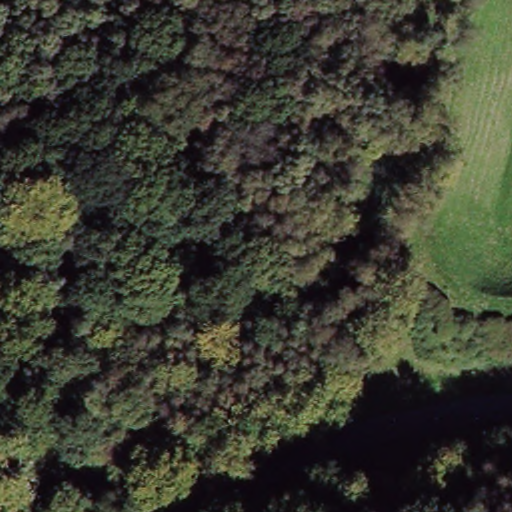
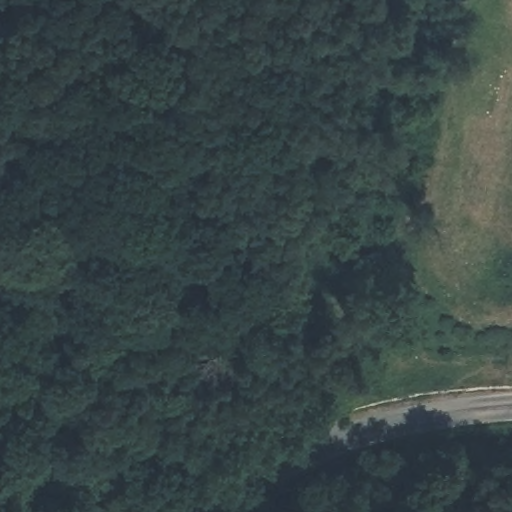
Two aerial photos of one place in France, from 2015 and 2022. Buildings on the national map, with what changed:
[]

